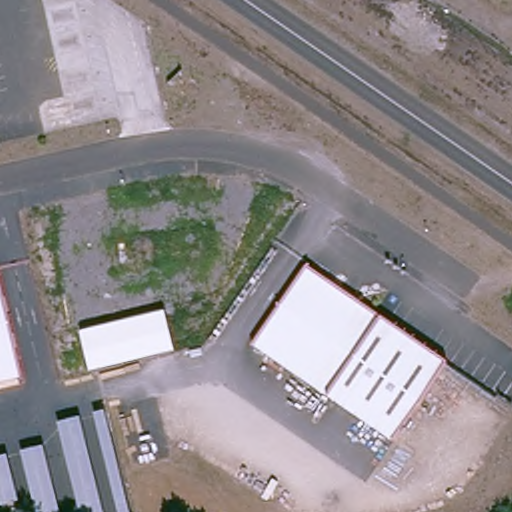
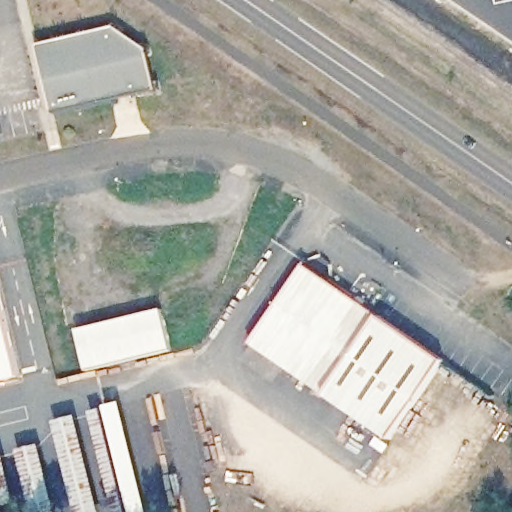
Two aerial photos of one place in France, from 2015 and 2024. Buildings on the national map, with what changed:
new [(52,113),(37,45),(115,27),(148,50),(156,89),(52,113)]
unchanged [(304,266),(331,283),(327,290),(343,302),(347,304),(352,298),(443,361),(389,439),(308,383),(250,343),(304,266)]
unchanged [(22,382),(5,386),(0,387),(0,290),(11,335),(22,382)]
unchanged [(80,330),(162,312),(172,351),(90,371),(80,330)]
unchanged [(101,512),(74,512),(54,424),(79,418),(101,512)]
unchanged [(16,453),(42,447),(59,512),(30,512),(16,453)]
unchanged [(0,510),(0,455),(4,455),(17,506),(0,510)]

